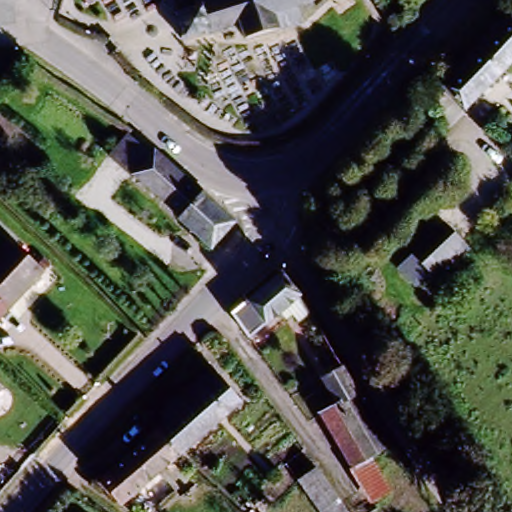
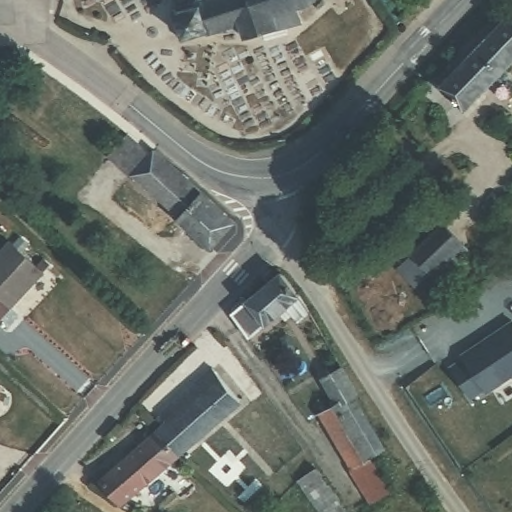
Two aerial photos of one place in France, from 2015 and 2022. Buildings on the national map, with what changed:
unchanged [(297,28),(239,44),(235,32),(219,37),(218,33),(199,40),(198,36),(178,43),(177,40),(170,17),(190,11),(189,7),(209,1),(213,0),(314,0),(306,10),(294,14),(297,28)]
unchanged [(439,86),(512,11),(512,61),(463,110),(439,86)]
unchanged [(234,217),(210,243),(179,214),(180,213),(133,171),(132,172),(108,151),(127,129),(150,149),(154,145),(234,217)]
unchanged [(437,279),(431,272),(412,253),(443,223),(462,243),(467,249),(437,279)]
unchanged [(5,241),(38,272),(0,313),(0,247),(5,241)]
unchanged [(281,315),(267,325),(266,325),(248,337),(232,313),(247,301),(281,272),(299,295),(310,313),(295,323),(293,319),(287,323),(281,315)]
unchanged [(339,289),(331,293),(327,286),(335,282),(339,289)]
new [(482,386),(468,395),(450,367),(464,358),(461,354),(511,321),(512,322),(512,373),(485,391),(482,386)]
unchanged [(372,502),(351,467),(320,413),(332,407),(329,401),(333,398),(321,379),(342,367),(357,393),(353,396),(383,448),(370,456),(390,491),(372,502)]
unchanged [(154,428),(159,424),(161,427),(167,422),(159,413),(212,368),(239,401),(177,454),(157,432),(154,428)]
unchanged [(177,454),(121,501),(104,478),(157,432),(177,454)]
unchanged [(319,512),(297,481),(315,468),(347,512),(319,512)]

